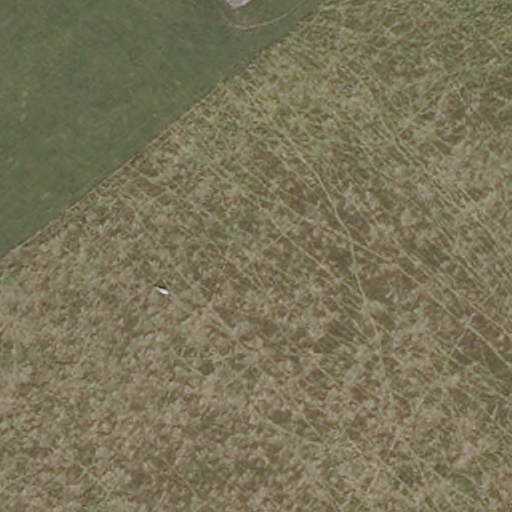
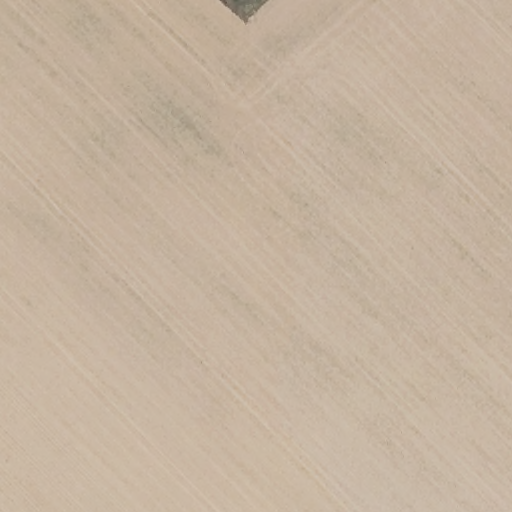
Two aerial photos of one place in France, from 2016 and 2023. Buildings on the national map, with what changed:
[]

